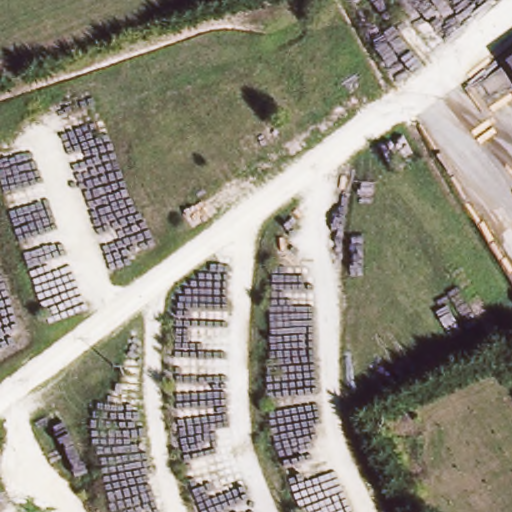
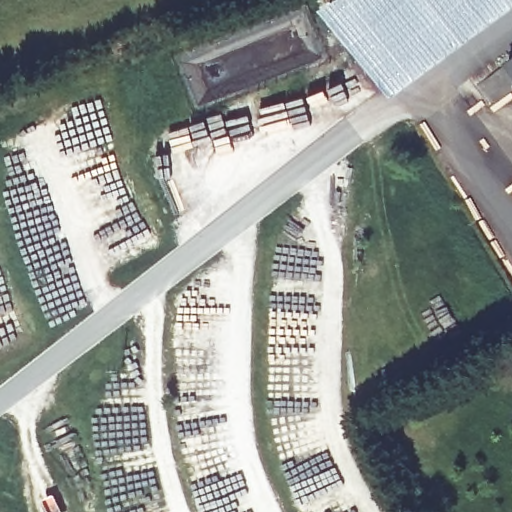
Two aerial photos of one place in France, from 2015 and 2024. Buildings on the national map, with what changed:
new [(394,88),(332,0),(512,0),(512,2),(485,22),(394,88)]
unchanged [(506,67),(512,63),(512,75),(506,67)]

